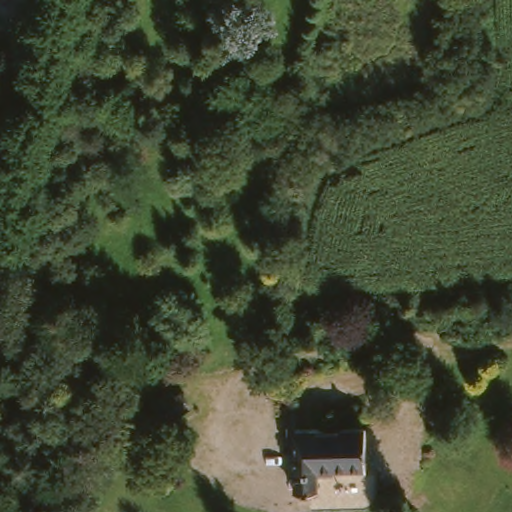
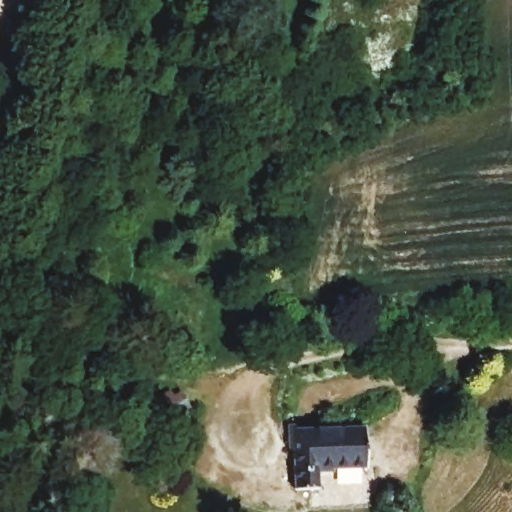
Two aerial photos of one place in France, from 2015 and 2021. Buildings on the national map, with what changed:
unchanged [(370,434),(365,472),(315,468),(313,486),(289,484),(296,428),(370,434)]

